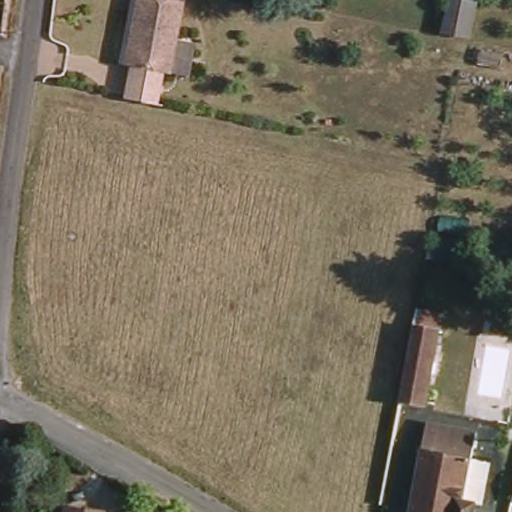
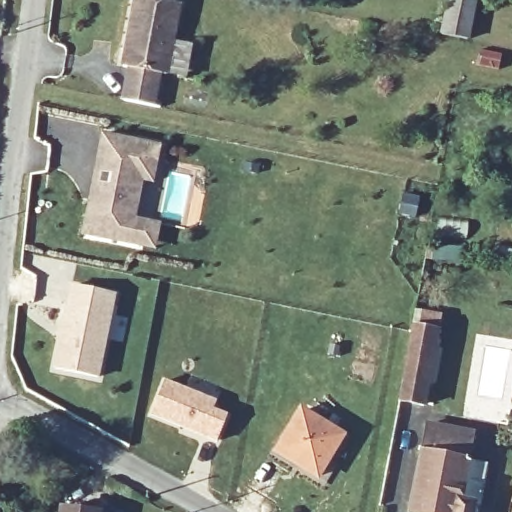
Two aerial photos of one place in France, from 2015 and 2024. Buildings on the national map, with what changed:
unchanged [(153,106),(118,103),(124,67),(133,19),(137,0),(149,0),(179,5),(175,27),(166,75),(159,73),(153,106)]
unchanged [(451,0),(478,0),(472,37),(445,32),(451,0)]
new [(154,249),(139,247),(81,237),(88,202),(90,191),(100,136),(158,147),(151,184),(140,182),(133,220),(144,223),(158,225),(154,249)]
new [(70,288),(113,296),(96,379),(54,371),(70,288)]
unchanged [(444,338),(432,403),(406,399),(418,332),(444,338)]
new [(213,409),(228,414),(217,442),(151,416),(165,379),(217,401),(213,409)]
new [(298,412),(339,436),(314,478),(274,453),(298,412)]
unchanged [(482,504),(480,512),(412,512),(429,424),(478,434),(466,501),(482,504)]
new [(512,502),(512,512),(510,512),(512,502)]
unchanged [(71,512),(64,512),(64,511),(71,512)]

